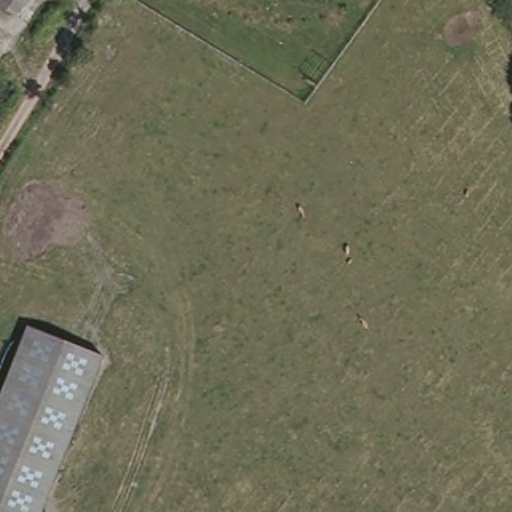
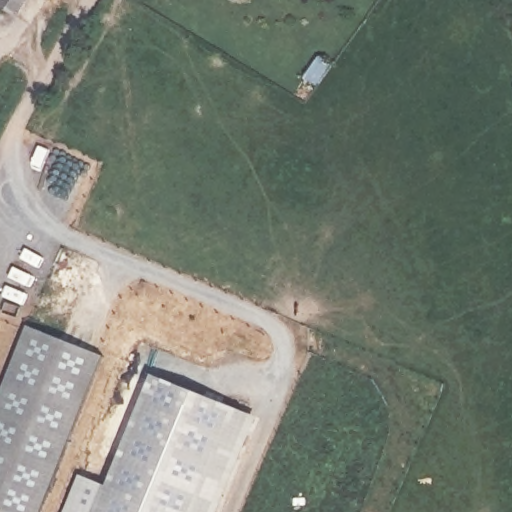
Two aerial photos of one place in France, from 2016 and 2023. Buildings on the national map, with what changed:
unchanged [(0,7),(0,0),(33,0),(19,21),(0,7)]
unchanged [(28,325),(109,361),(41,512),(0,512),(0,387),(28,325)]
new [(81,474),(111,485),(153,375),(262,417),(223,512),(67,512),(81,474)]

